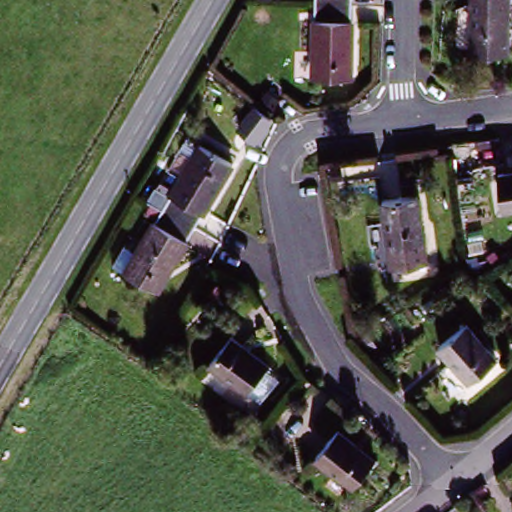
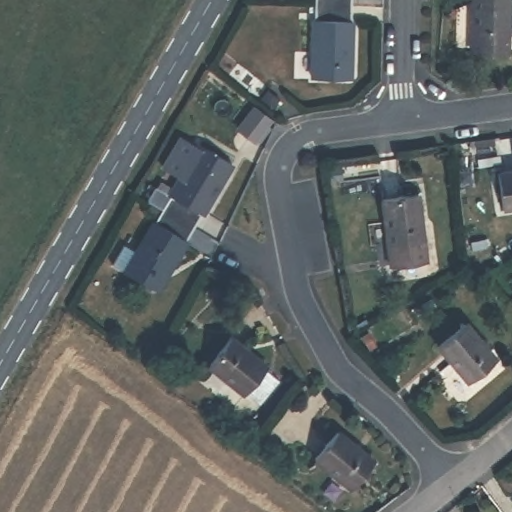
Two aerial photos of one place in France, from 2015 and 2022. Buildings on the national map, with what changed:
unchanged [(355,0),(355,7),(319,5),(319,0),(355,0)]
unchanged [(464,50),(467,13),(482,14),(483,0),(512,0),(512,46),(512,54),(464,50)]
unchanged [(319,5),(355,7),(353,78),(317,76),(318,27),(319,5)]
unchanged [(127,259),(156,219),(168,204),(149,190),(159,175),(179,187),(187,173),(172,161),(187,139),(204,148),(205,145),(237,166),(209,212),(205,210),(199,224),(158,283),(127,259)]
unchanged [(505,208),(501,174),(512,173),(512,207),(505,208)]
unchanged [(392,195),(428,197),(425,264),(389,262),(392,195)]
unchanged [(500,361),(471,383),(445,348),(474,326),(500,361)]
unchanged [(242,384),(239,387),(205,357),(229,328),(264,358),(262,361),(272,371),(254,394),(242,384)]
unchanged [(347,493),(312,463),(336,436),(370,466),(347,493)]

